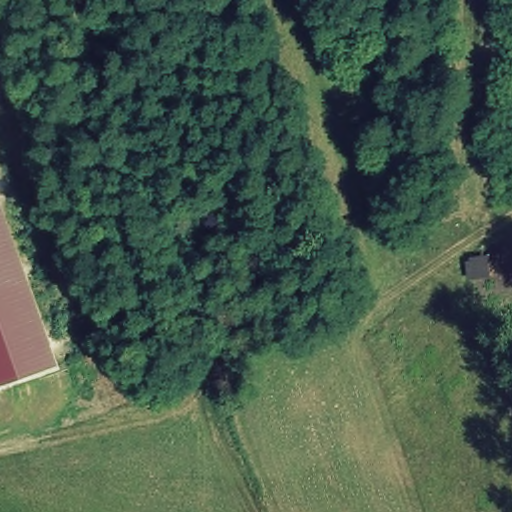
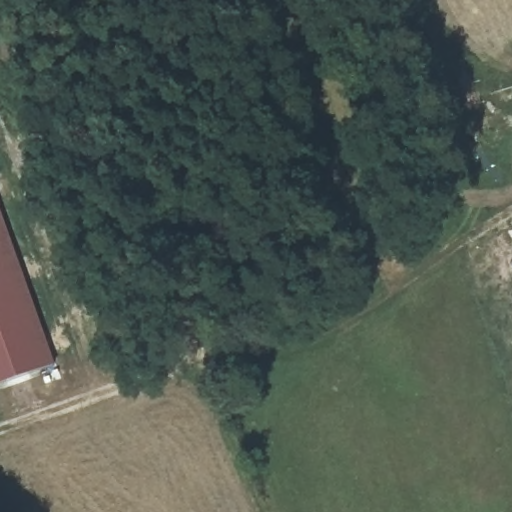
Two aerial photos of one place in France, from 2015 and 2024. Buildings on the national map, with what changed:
unchanged [(56,366),(0,385),(0,207),(56,366)]

